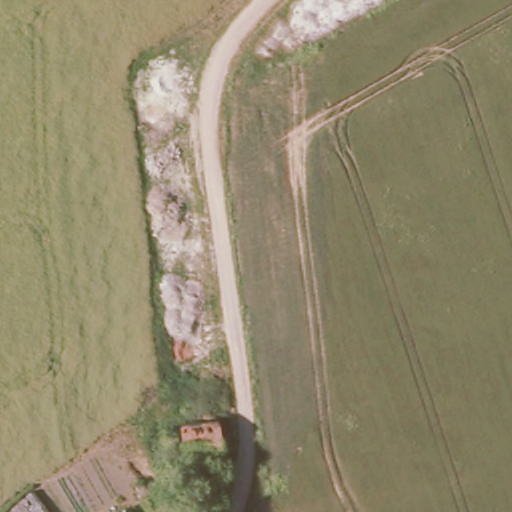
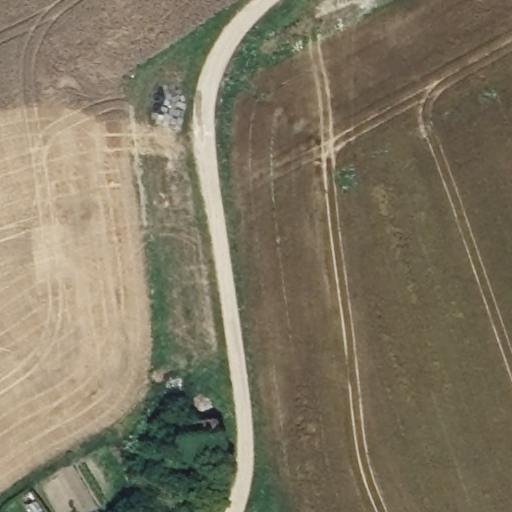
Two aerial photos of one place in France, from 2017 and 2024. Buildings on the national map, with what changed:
unchanged [(190,449),(187,418),(229,415),(230,446),(190,449)]

